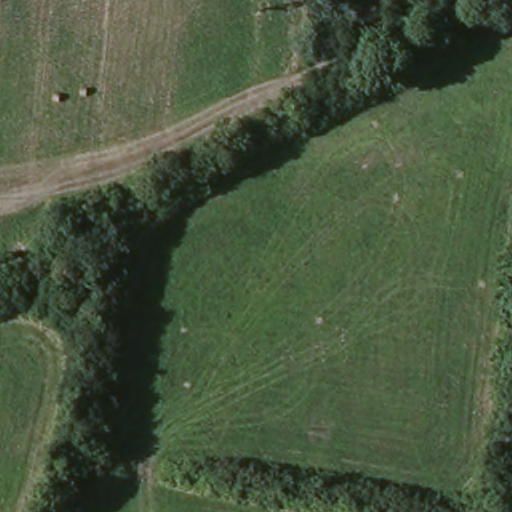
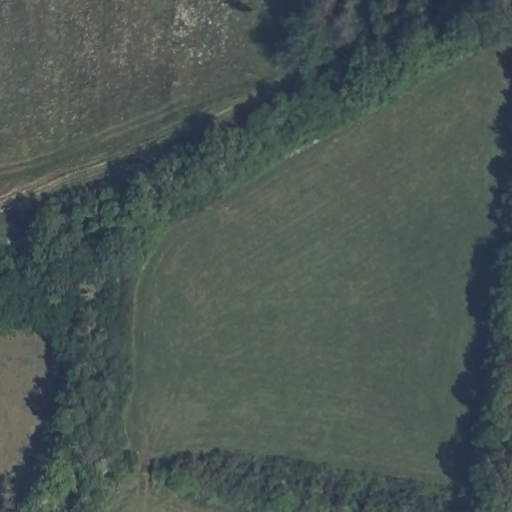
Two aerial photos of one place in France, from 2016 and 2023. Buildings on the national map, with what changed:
[]

